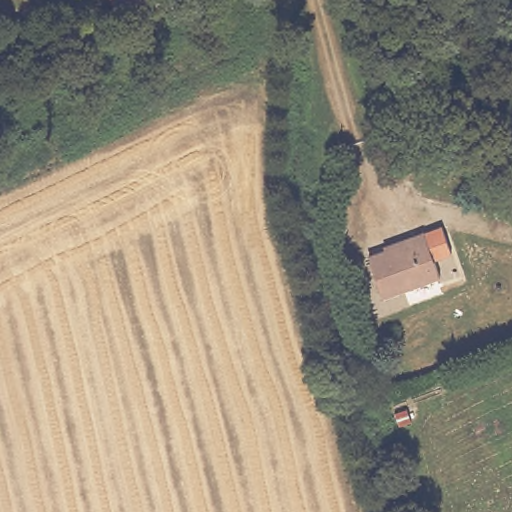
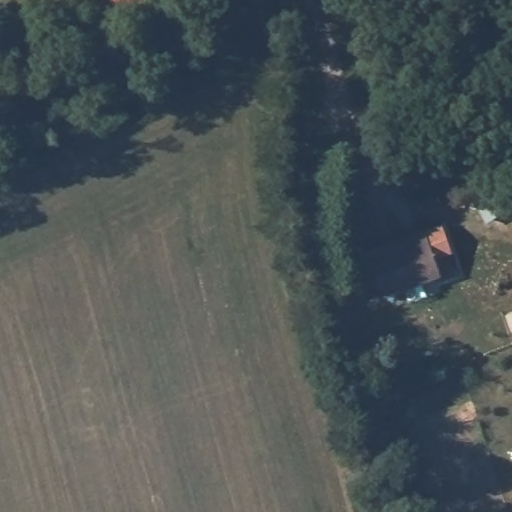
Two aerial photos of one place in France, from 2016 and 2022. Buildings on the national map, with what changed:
unchanged [(114,14),(108,0),(146,0),(114,14)]
unchanged [(411,242),(410,237),(450,228),(457,257),(434,263),(438,279),(379,294),(368,252),(411,242)]

